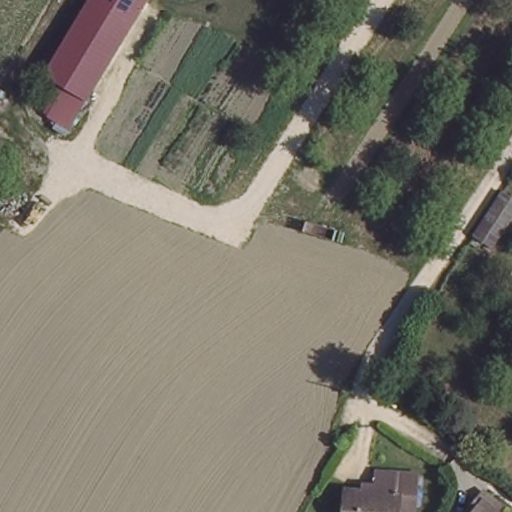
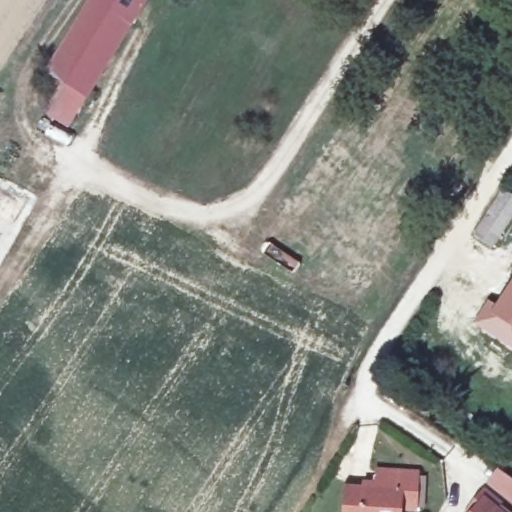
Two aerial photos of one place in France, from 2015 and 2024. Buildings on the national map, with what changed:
unchanged [(92,95),(50,72),(90,0),(146,0),(92,95)]
unchanged [(89,100),(88,101),(75,125),(55,114),(69,90),(70,89),(89,100)]
unchanged [(512,195),(512,220),(496,248),(475,233),(502,188),(512,195)]
new [(487,299),(496,304),(512,280),(512,350),(470,323),(487,299)]
unchanged [(417,507),(405,507),(405,512),(347,512),(350,481),(380,482),(382,466),(420,469),(417,507)]
unchanged [(479,512),(487,503),(497,512),(479,512)]

